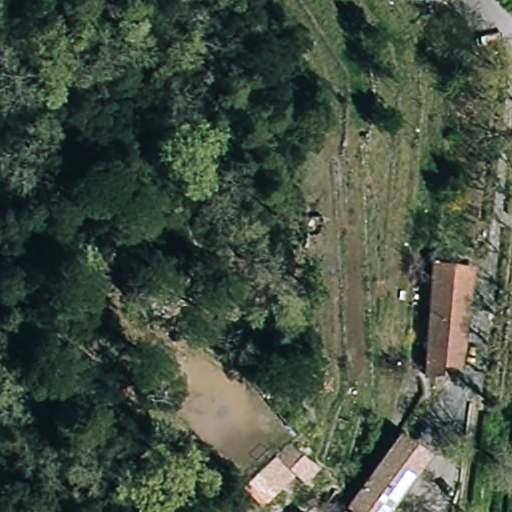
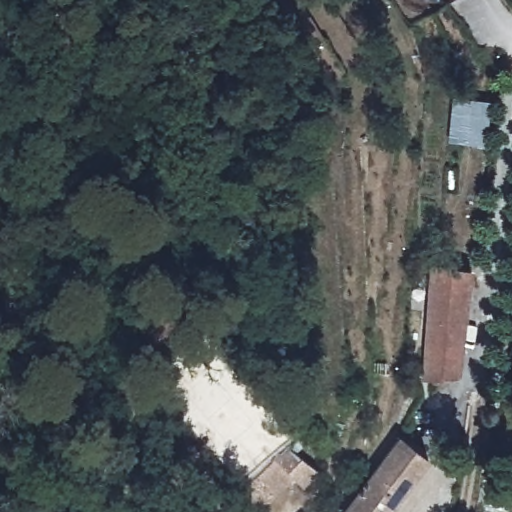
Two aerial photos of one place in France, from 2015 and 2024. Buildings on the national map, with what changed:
new [(452,96),(488,98),(485,144),(448,141),(452,96)]
unchanged [(422,374),(427,314),(430,260),(454,262),(470,263),(455,368),(422,374)]
unchanged [(400,438),(428,458),(389,512),(345,512),(355,497),(400,438)]
unchanged [(277,491),(261,475),(285,444),(315,463),(302,480),(292,475),(277,491)]
unchanged [(319,512),(315,512),(318,510),(319,512)]

